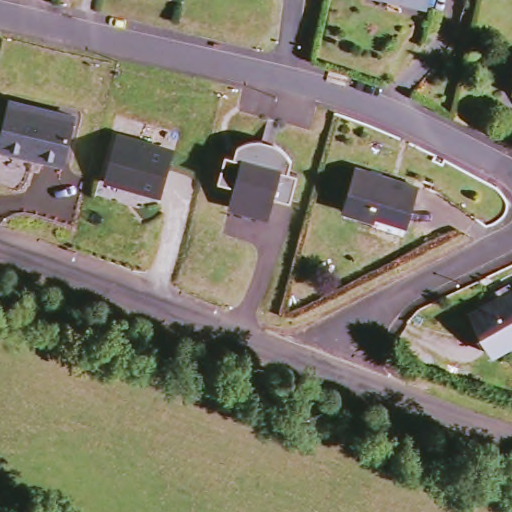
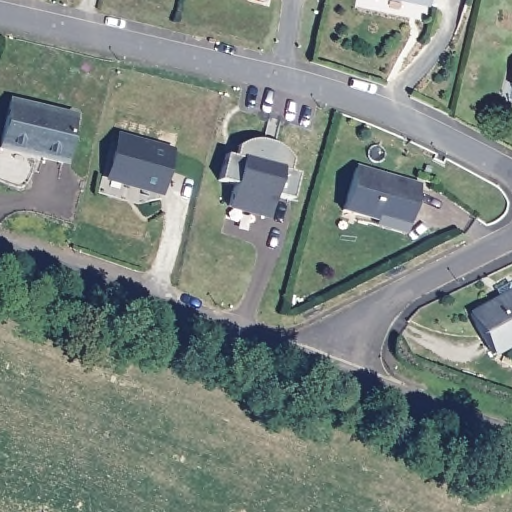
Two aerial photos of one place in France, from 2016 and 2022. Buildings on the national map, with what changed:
unchanged [(396,5),(378,0),(398,0),(396,5)]
unchanged [(425,2),(418,0),(425,0),(425,2)]
unchanged [(1,150),(11,102),(76,116),(66,164),(1,150)]
unchanged [(122,135),(174,149),(163,192),(144,187),(145,184),(137,182),(133,185),(110,179),(122,135)]
unchanged [(223,157),(232,159),(235,148),(237,147),(243,144),(249,142),(255,142),(259,142),(264,143),(265,143),(270,145),(273,146),(276,147),(280,151),(282,152),(284,154),(287,157),(288,159),(290,162),(287,172),(296,175),(289,202),(273,197),(268,219),(227,209),(233,187),(217,184),(223,157)]
unchanged [(406,222),(375,215),(373,221),(343,212),(354,169),(415,182),(406,222)]
unchanged [(469,315),(497,297),(493,292),(506,284),(511,290),(512,289),(512,341),(492,353),(469,315)]

